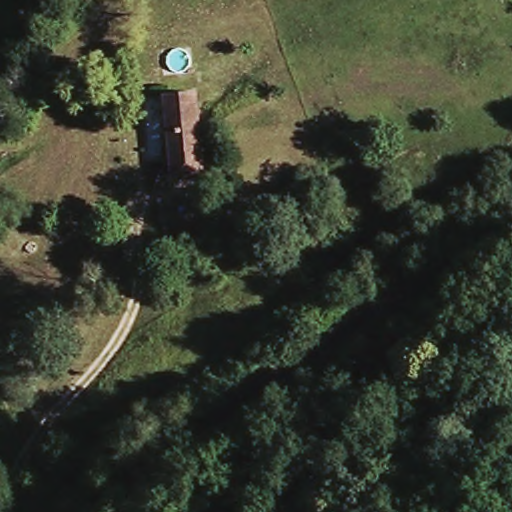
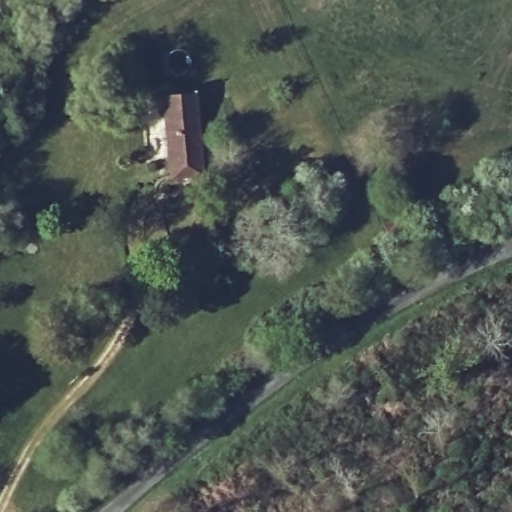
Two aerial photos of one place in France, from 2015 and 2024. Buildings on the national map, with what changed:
unchanged [(168,176),(160,96),(194,93),(201,173),(168,176)]

